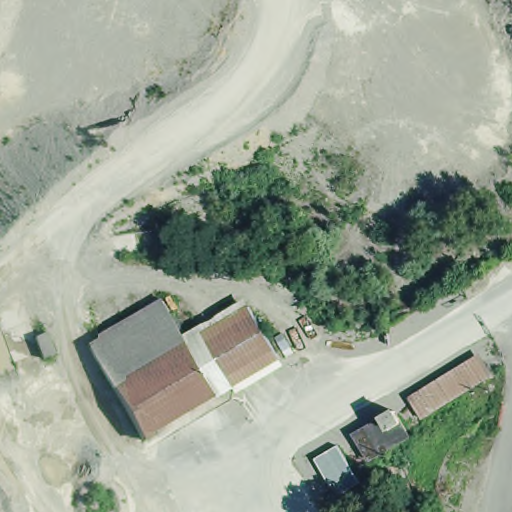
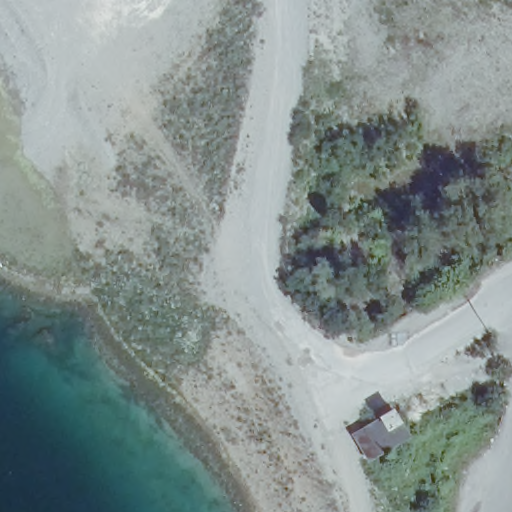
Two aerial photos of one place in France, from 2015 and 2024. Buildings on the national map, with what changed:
demolished [(133,450),(81,347),(159,302),(181,338),(244,303),(283,371),(133,450)]
demolished [(417,396),(489,350),(502,373),(427,417),(417,396)]
unchanged [(364,465),(345,431),(354,425),(394,401),(414,437),(376,458),(364,465)]
unchanged [(316,457),(341,446),(360,483),(339,492),(316,457)]

